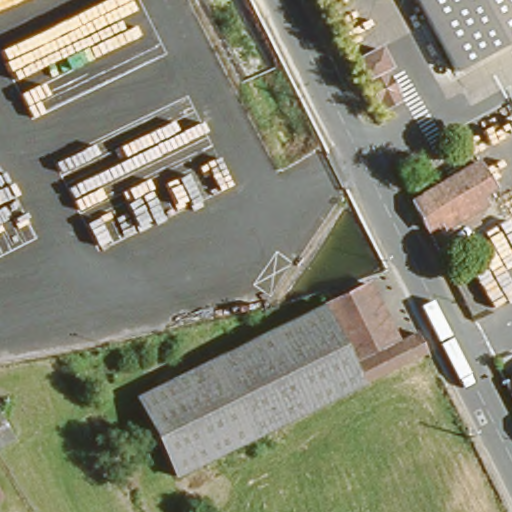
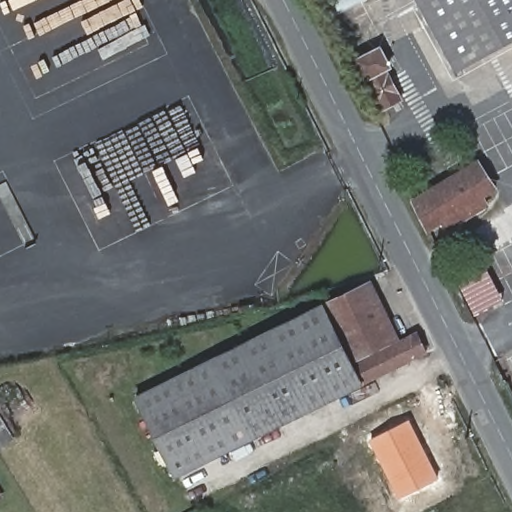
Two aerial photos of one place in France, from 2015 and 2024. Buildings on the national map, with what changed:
new [(366,1),(341,14),(334,0),(365,0),(366,1)]
unchanged [(411,0),(512,0),(512,42),(454,74),(411,0)]
unchanged [(381,46),(391,63),(386,66),(402,94),(384,104),(359,57),(381,46)]
unchanged [(433,228),(418,200),(484,161),(500,188),(487,196),(492,204),(461,223),(453,229),(447,220),(433,228)]
demolished [(497,210),(512,201),(512,236),(497,210)]
unchanged [(325,303),(369,281),(397,334),(401,332),(404,336),(421,329),(431,348),(366,381),(180,476),(135,399),(325,303)]
unchanged [(327,285),(329,291),(323,293),(320,288),(327,285)]
unchanged [(512,376),(512,395),(504,382),(512,376)]
unchanged [(0,441),(0,411),(14,433),(0,441)]
new [(409,420),(439,480),(399,500),(369,441),(409,420)]
unchanged [(0,487),(5,496),(0,498),(0,487)]

